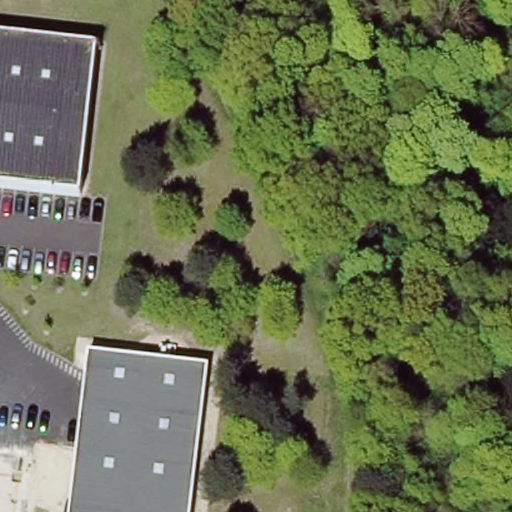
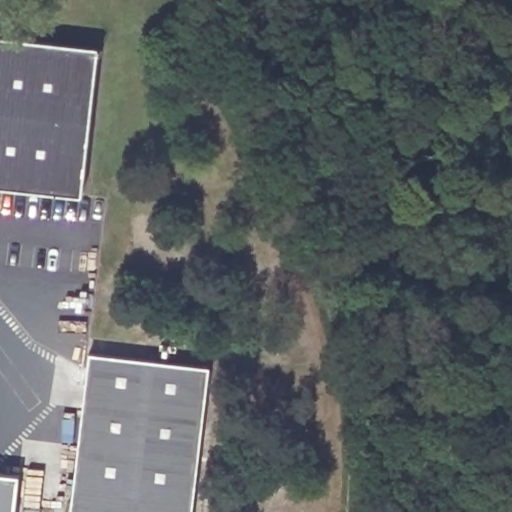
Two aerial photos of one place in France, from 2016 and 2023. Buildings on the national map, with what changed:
unchanged [(100,46),(82,197),(0,188),(0,34),(100,46)]
unchanged [(190,512),(71,512),(88,352),(208,367),(190,512)]
new [(0,512),(0,472),(17,473),(12,512),(0,512)]

